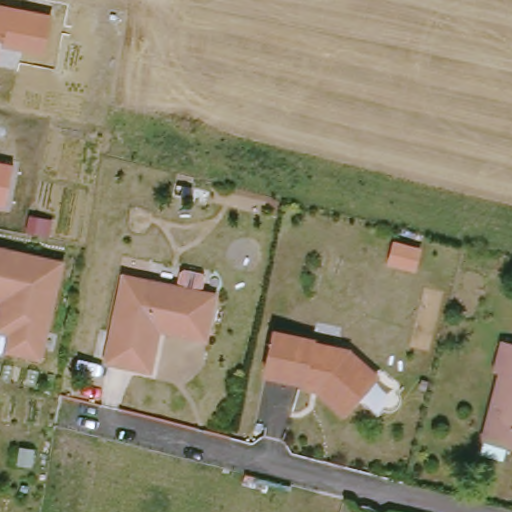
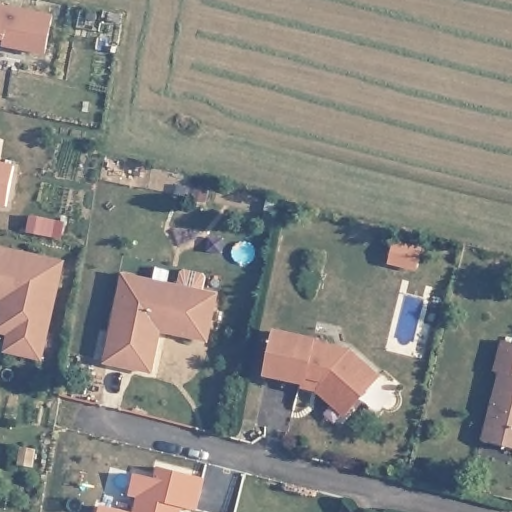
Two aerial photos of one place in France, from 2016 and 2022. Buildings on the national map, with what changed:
unchanged [(45,58),(2,49),(4,43),(0,42),(0,6),(52,15),(46,51),(45,58)]
unchanged [(5,209),(0,207),(0,164),(13,166),(5,209)]
unchanged [(0,303),(0,251),(62,265),(43,362),(9,356),(12,337),(0,335),(0,326),(5,304),(0,303)]
unchanged [(195,336),(162,329),(153,373),(108,363),(125,277),(215,294),(210,323),(207,339),(195,336)]
unchanged [(325,393),(310,389),(312,384),(273,376),(283,331),(320,340),(319,344),(357,353),(382,379),(357,407),(349,417),(325,393)]
unchanged [(512,346),(512,449),(487,442),(503,376),(500,375),(505,344),(512,346)]
new [(142,494),(133,492),(138,472),(160,477),(163,465),(207,477),(198,509),(184,505),(182,512),(138,512),(142,494)]
new [(103,504),(134,512),(101,512),(103,504)]

